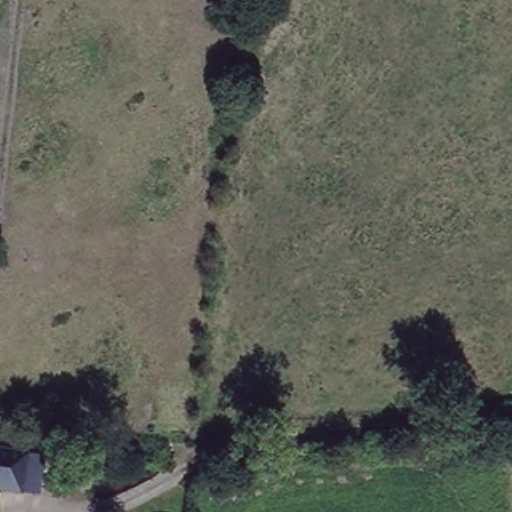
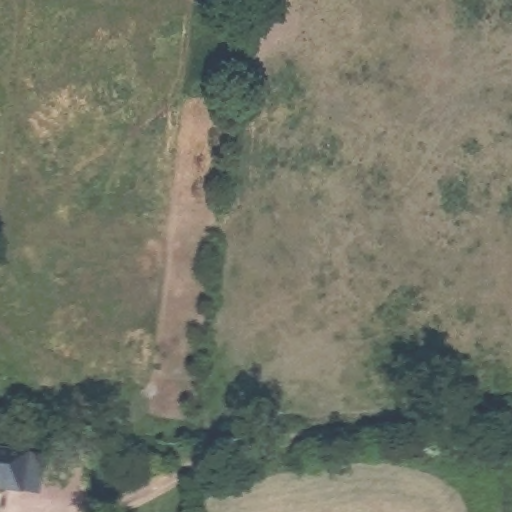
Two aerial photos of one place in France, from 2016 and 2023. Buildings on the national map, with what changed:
unchanged [(16,496),(1,493),(0,493),(0,454),(7,455),(22,457),(16,496)]

